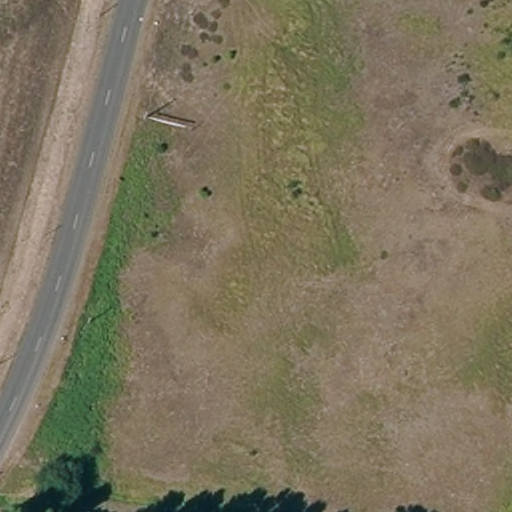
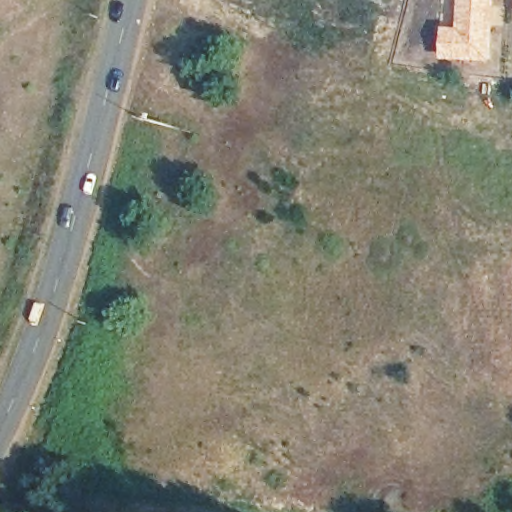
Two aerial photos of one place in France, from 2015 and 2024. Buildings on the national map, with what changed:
new [(441,60),(442,29),(458,29),(459,0),(494,0),(491,64),(441,60)]

